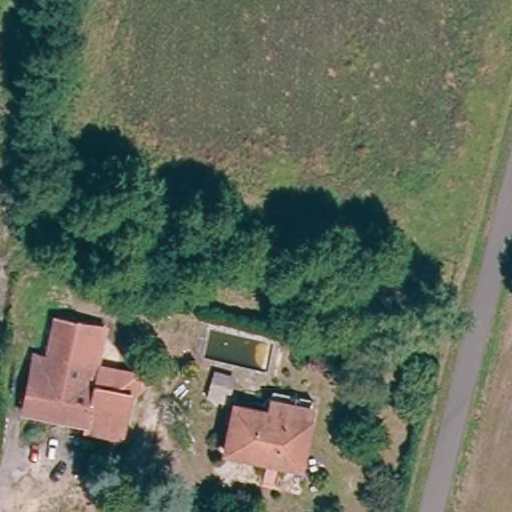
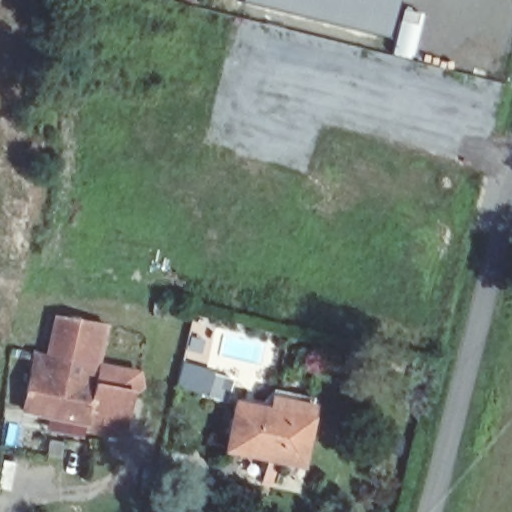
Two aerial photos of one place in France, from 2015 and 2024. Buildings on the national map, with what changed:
new [(396,0),(387,38),(283,13),(240,1),(240,0),(396,0)]
new [(403,6),(424,12),(413,60),(390,54),(403,6)]
unchanged [(114,438),(79,431),(81,423),(17,410),(29,353),(42,355),(50,315),(98,326),(90,366),(131,375),(135,388),(124,394),(114,438)]
unchanged [(311,406),(298,468),(225,453),(234,407),(267,413),(270,398),(311,406)]

